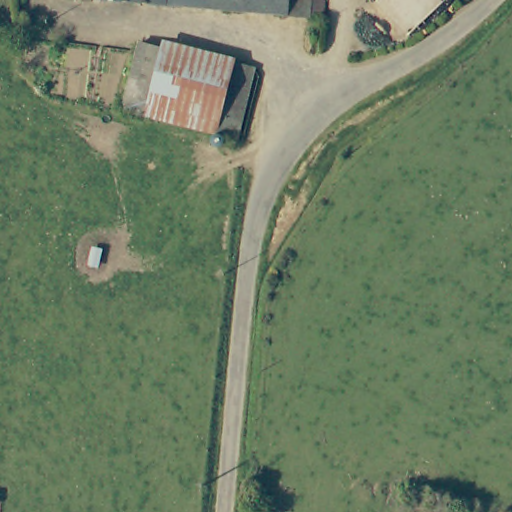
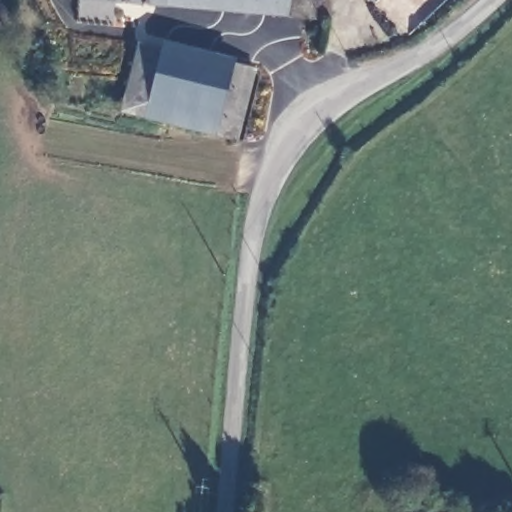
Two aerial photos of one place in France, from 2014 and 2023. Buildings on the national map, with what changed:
unchanged [(152,0),(306,0),(305,13),(283,12),(152,0)]
unchanged [(121,106),(136,46),(139,38),(162,44),(145,112),(121,106)]
unchanged [(162,44),(231,66),(216,128),(145,112),(162,44)]
unchanged [(231,66),(234,58),(255,63),(237,134),(216,128),(231,66)]

